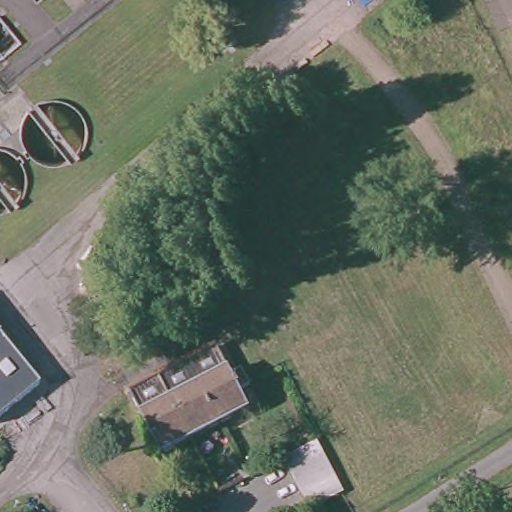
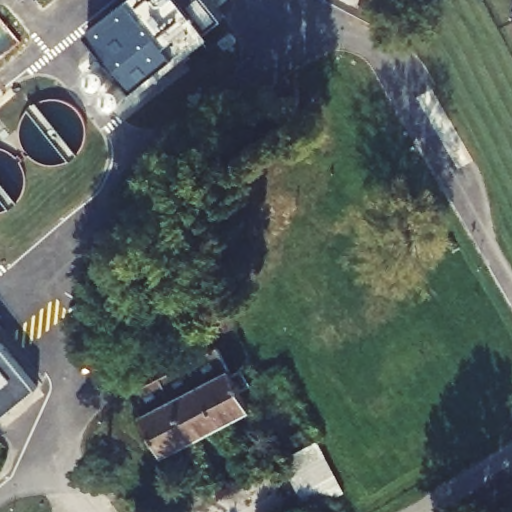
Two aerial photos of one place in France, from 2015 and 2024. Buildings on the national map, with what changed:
new [(211,0),(224,17),(208,30),(211,35),(141,93),(134,86),(88,29),(124,0),(211,0)]
unchanged [(37,387),(0,419),(0,342),(37,387)]
unchanged [(129,391),(136,387),(146,382),(157,377),(159,381),(219,350),(232,375),(242,370),(251,387),(241,392),(251,411),(161,459),(134,404),(129,391)]
unchanged [(326,465),(342,495),(308,512),(307,512),(281,460),(316,445),(326,465)]

